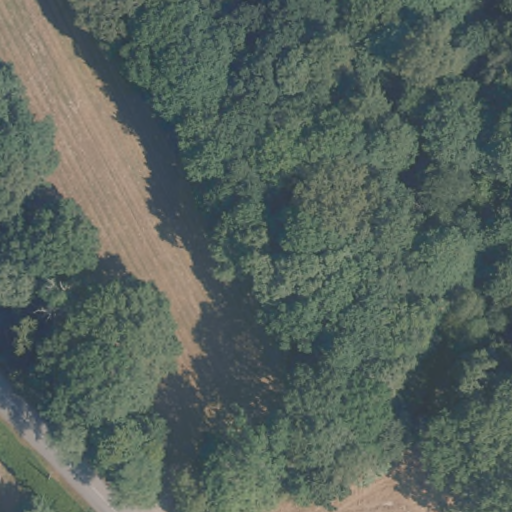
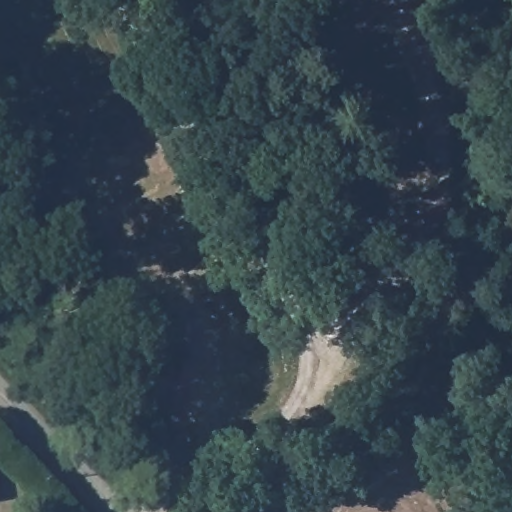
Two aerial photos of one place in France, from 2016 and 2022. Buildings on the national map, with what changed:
[]

